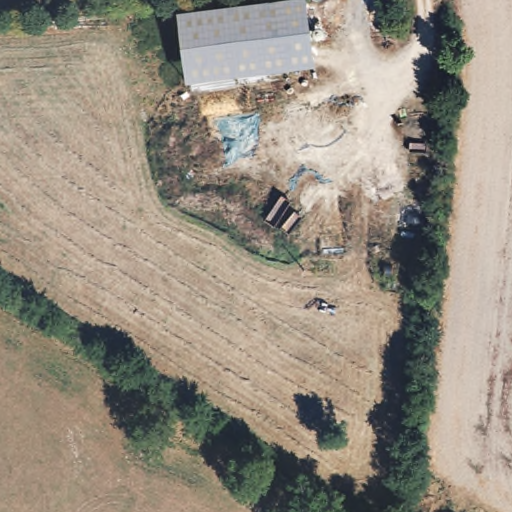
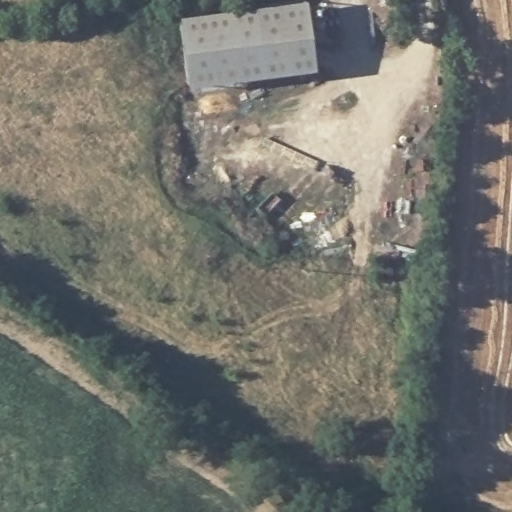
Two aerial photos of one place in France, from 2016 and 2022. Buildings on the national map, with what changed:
unchanged [(304,0),(314,69),(186,84),(179,16),(304,0)]

